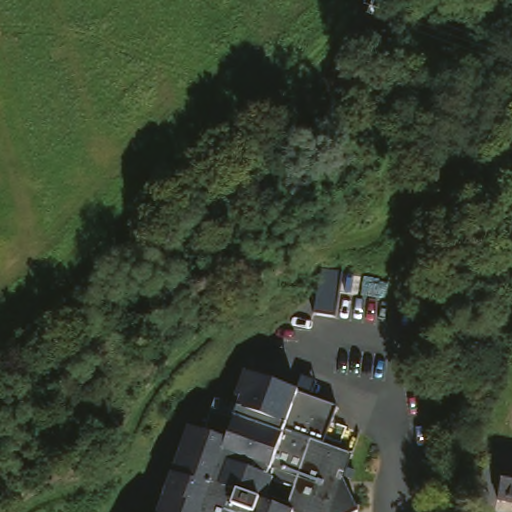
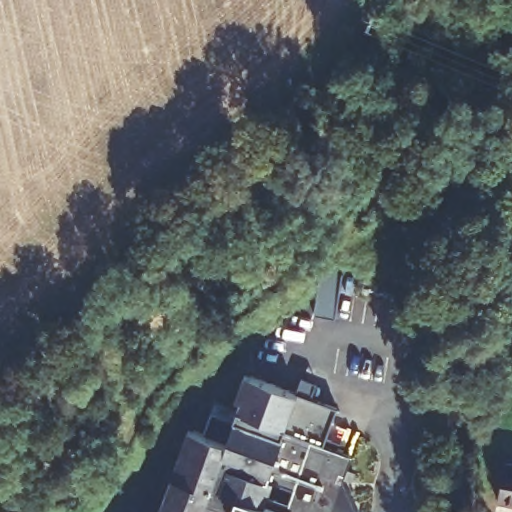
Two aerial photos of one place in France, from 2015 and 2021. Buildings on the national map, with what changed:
unchanged [(197,460),(212,413),(234,421),(247,379),(335,410),(324,447),(352,457),(344,479),(362,512),(167,512),(188,456),(197,460)]
unchanged [(512,500),(506,499),(510,462),(512,462),(512,500)]

